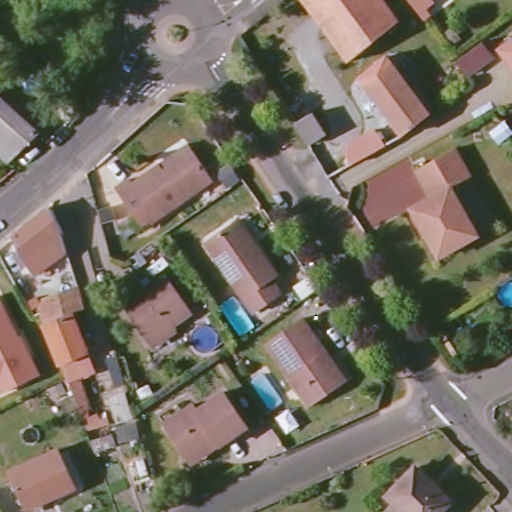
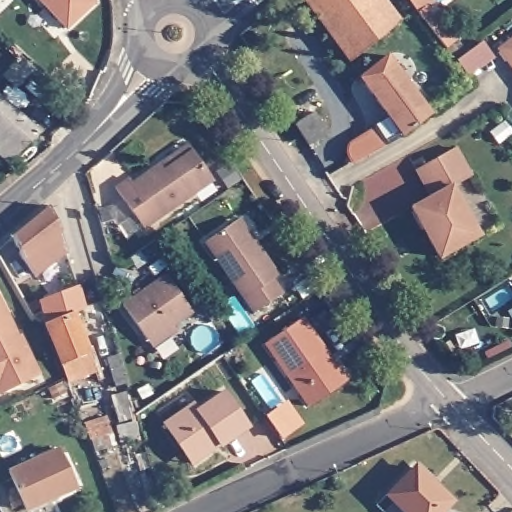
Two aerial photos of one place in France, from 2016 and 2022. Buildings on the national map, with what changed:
new [(94,0),(95,2),(66,29),(41,0),(94,0)]
unchanged [(384,0),(400,21),(378,40),(355,57),(348,63),(302,0),(384,0)]
unchanged [(361,78),(366,73),(355,57),(378,40),(389,56),(387,58),(430,116),(404,135),(361,78)]
unchanged [(500,49),(512,40),(512,65),(500,49)]
unchanged [(325,134),(308,144),(287,111),(276,93),(293,81),(303,99),(325,134)]
unchanged [(8,161),(0,154),(0,98),(39,134),(8,161)]
unchanged [(353,164),(347,153),(358,144),(378,133),(386,146),(353,164)]
unchanged [(143,229),(114,189),(129,179),(133,184),(161,165),(161,164),(189,145),(193,150),(214,180),(143,229)]
unchanged [(471,181),(453,191),(479,240),(439,262),(413,212),(432,200),(418,173),(456,152),(471,181)]
unchanged [(36,274),(24,260),(23,260),(13,238),(51,205),(65,232),(63,234),(68,250),(36,274)]
unchanged [(273,280),(282,294),(256,313),(207,242),(236,223),(239,220),(256,245),(278,276),(273,280)]
unchanged [(155,348),(151,343),(125,306),(167,276),(193,313),(174,326),(178,332),(155,348)]
unchanged [(74,354),(93,411),(78,417),(63,374),(42,318),(38,305),(43,296),(75,284),(81,303),(69,308),(86,348),(74,354)]
unchanged [(20,333),(38,373),(0,392),(0,298),(16,335),(20,333)]
unchanged [(341,386),(311,407),(268,344),(304,319),(331,359),(347,382),(341,386)]
unchanged [(184,454),(161,419),(188,401),(193,406),(221,388),(244,423),(218,442),(218,441),(188,460),(184,454)]
unchanged [(136,422),(139,439),(122,442),(118,426),(136,422)]
unchanged [(76,487),(28,508),(11,472),(59,450),(76,487)]
unchanged [(386,506),(396,497),(388,489),(414,463),(436,484),(438,482),(453,496),(437,512),(393,512),(386,506)]

